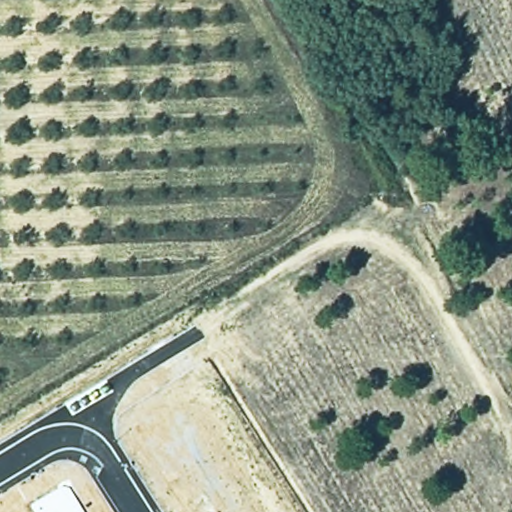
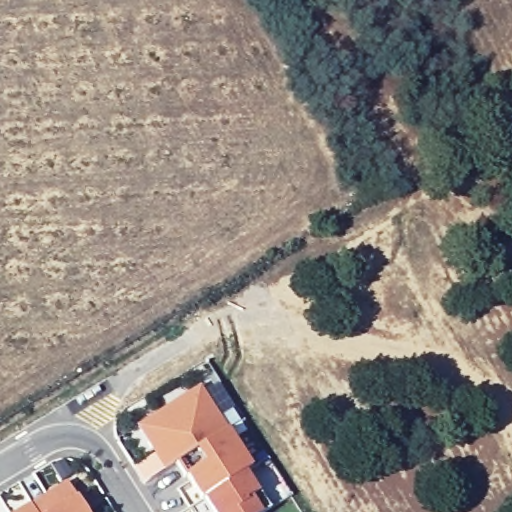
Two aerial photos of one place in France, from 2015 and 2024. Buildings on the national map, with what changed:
unchanged [(344,0),(378,0),(350,14),(344,0)]
new [(135,426),(199,387),(226,429),(192,451),(177,462),(163,469),(135,426)]
new [(250,468),(245,472),(200,499),(185,477),(177,462),(192,451),(226,429),(250,468)]
new [(257,493),(268,509),(263,512),(208,512),(200,499),(245,472),(257,493)]
new [(29,504),(65,483),(75,498),(84,512),(34,512),(29,504)]
new [(29,504),(34,512),(15,512),(29,504)]

